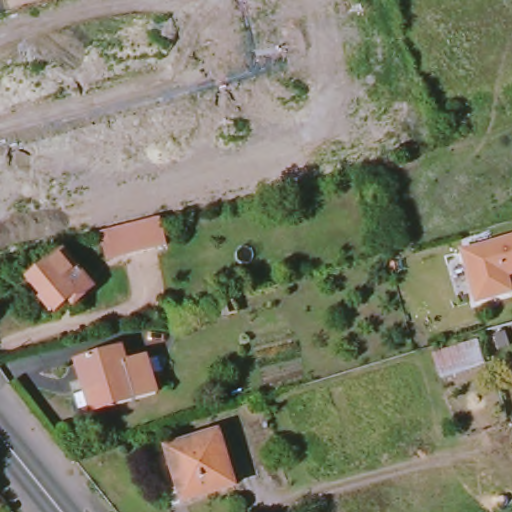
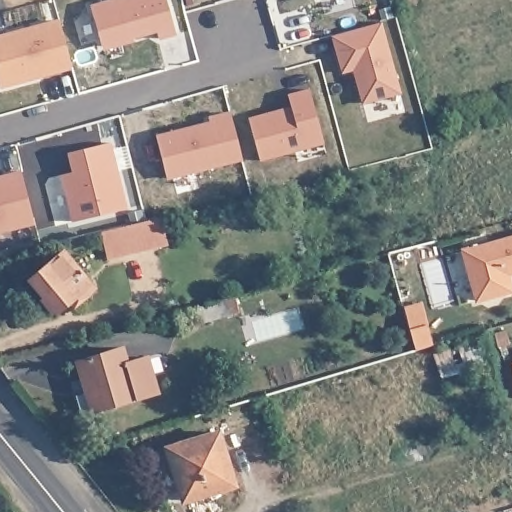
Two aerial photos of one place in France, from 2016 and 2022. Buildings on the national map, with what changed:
new [(157,33),(102,47),(90,6),(109,0),(165,0),(175,34),(159,39),(157,33)]
new [(0,88),(0,36),(59,20),(72,69),(0,88)]
new [(361,105),(352,71),(340,74),(331,37),(382,22),(400,93),(361,105)]
demolished [(25,156),(0,162),(0,69),(10,104),(22,145),(25,156)]
new [(261,161),(249,117),(291,106),(287,94),(309,89),(324,144),(261,161)]
new [(167,180),(156,136),(210,122),(209,116),(229,112),(241,161),(167,180)]
new [(73,221),(60,175),(73,172),(68,154),(111,143),(127,207),(73,221)]
new [(0,232),(0,176),(21,171),(33,224),(0,232)]
demolished [(132,226),(130,226),(117,229),(116,230),(103,232),(0,259),(0,200),(87,179),(91,192),(151,177),(160,218),(132,226)]
unchanged [(103,232),(116,230),(117,229),(130,226),(132,226),(160,218),(167,242),(168,245),(138,252),(124,256),(123,256),(109,260),(103,232)]
unchanged [(512,287),(512,297),(477,306),(463,253),(512,239),(512,279),(511,280),(512,287)]
unchanged [(63,250),(94,287),(73,305),(70,301),(57,312),(55,311),(52,313),(42,302),(41,299),(43,297),(28,280),(63,250)]
unchanged [(477,340),(484,361),(440,375),(433,354),(477,340)]
unchanged [(117,347),(121,362),(141,356),(152,392),(86,412),(71,361),(117,347)]
unchanged [(510,368),(512,368),(512,379),(510,368)]
unchanged [(212,431),(229,486),(181,500),(172,475),(169,477),(160,447),(212,431)]

